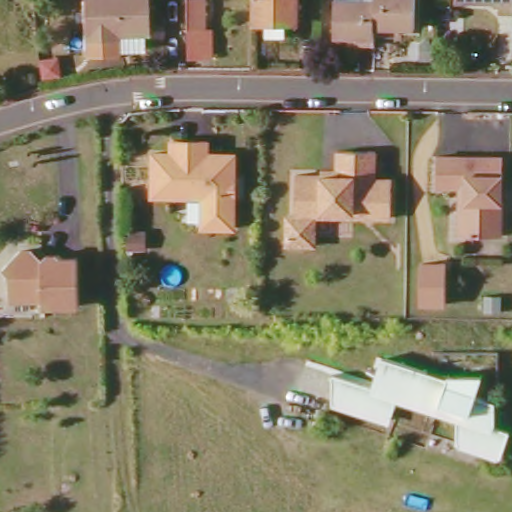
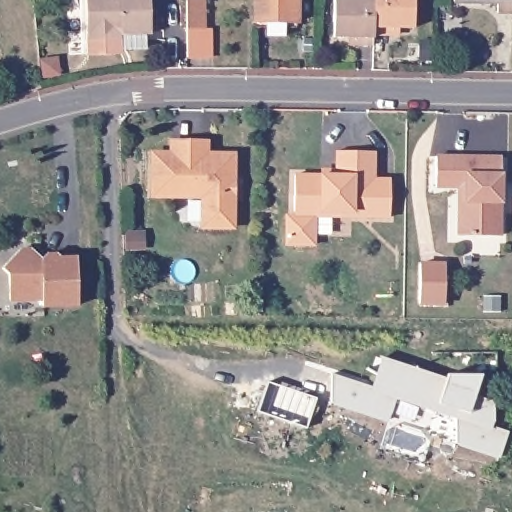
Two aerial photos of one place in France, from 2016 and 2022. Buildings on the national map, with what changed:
unchanged [(87,39),(86,0),(148,0),(149,31),(116,32),(116,51),(87,51),(87,39)]
unchanged [(204,0),(204,31),(212,31),(211,60),(186,60),(186,0),(204,0)]
unchanged [(295,0),(295,21),(252,21),(252,0),(295,0)]
unchanged [(347,35),(327,35),(327,0),(366,0),(367,33),(368,42),(347,41),(347,35)]
unchanged [(406,0),(406,25),(387,25),(387,32),(367,33),(366,0),(406,0)]
unchanged [(510,0),(510,14),(495,14),(495,1),(470,1),(467,5),(451,4),(451,0),(510,0)]
unchanged [(153,154),(171,154),(172,141),(206,142),(207,153),(234,154),(232,227),(202,227),(202,198),(152,197),(153,154)]
unchanged [(296,174),(339,174),(340,150),(376,150),(376,175),(390,175),(389,213),(356,213),(350,209),(316,209),(316,244),(288,244),(288,215),(296,215),(296,209),(296,174)]
unchanged [(430,153),(496,154),(492,233),(459,232),(459,186),(431,185),(430,181),(430,153)]
unchanged [(125,235),(139,235),(139,252),(124,251),(125,235)]
unchanged [(9,277),(1,267),(22,252),(26,258),(41,259),(46,254),(56,254),(60,258),(76,259),(77,306),(41,306),(41,300),(9,300),(9,277)]
unchanged [(419,263),(445,263),(443,306),(417,306),(419,263)]
unchanged [(331,371),(375,385),(385,355),(475,385),(472,393),(492,398),(492,416),(487,416),(487,420),(507,427),(499,453),(455,439),(455,411),(396,391),(387,418),(330,399),(331,371)]

